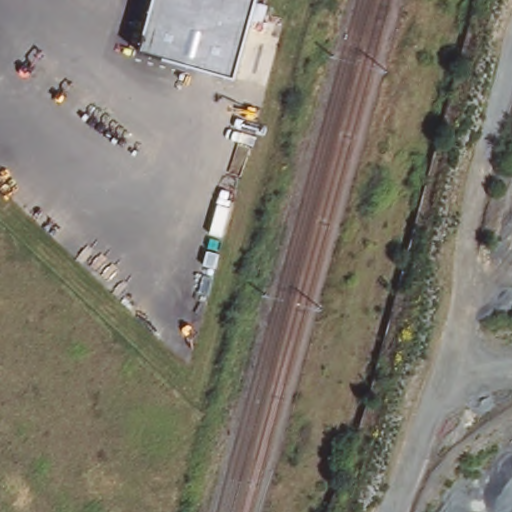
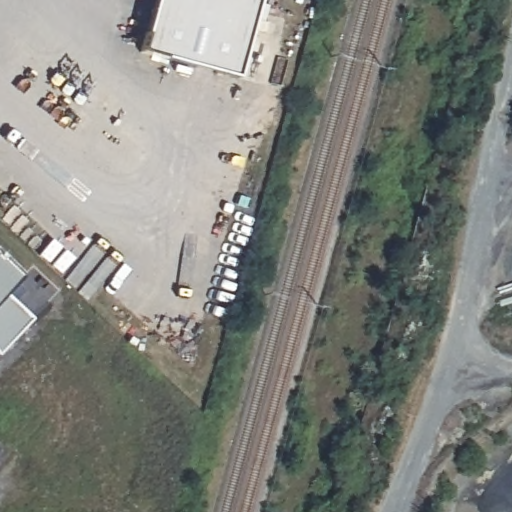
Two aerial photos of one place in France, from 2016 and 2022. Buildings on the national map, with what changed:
unchanged [(141,52),(155,0),(257,0),(237,77),(141,52)]
new [(28,278),(11,296),(0,308),(0,252),(28,278)]
new [(11,296),(36,320),(2,356),(0,354),(0,308),(11,296)]

